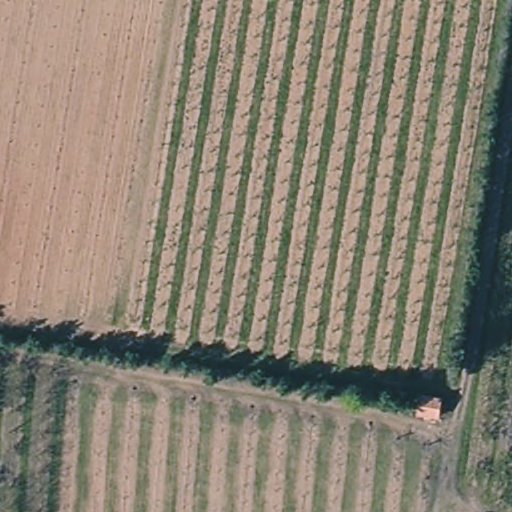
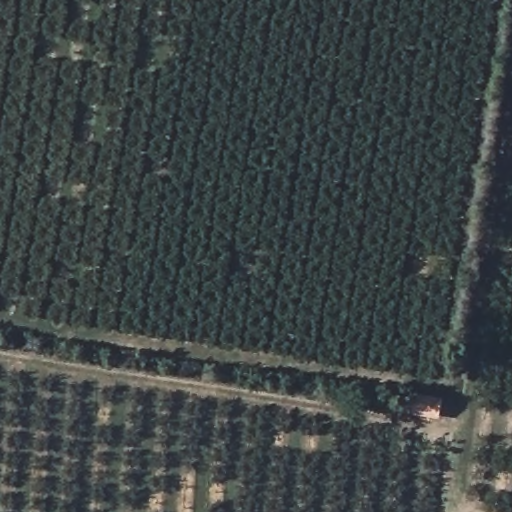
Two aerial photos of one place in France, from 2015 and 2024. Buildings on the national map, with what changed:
unchanged [(442,421),(408,416),(412,392),(444,397),(442,421)]

